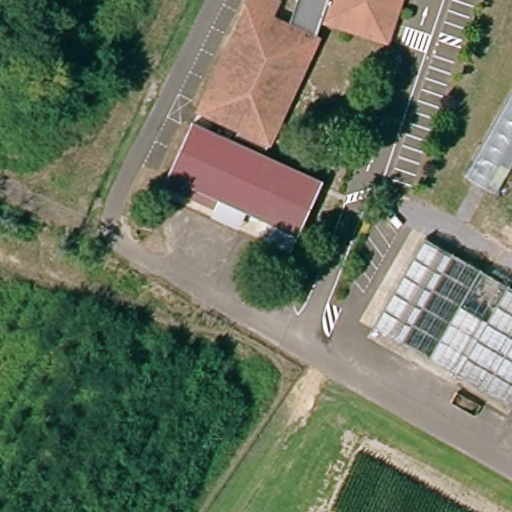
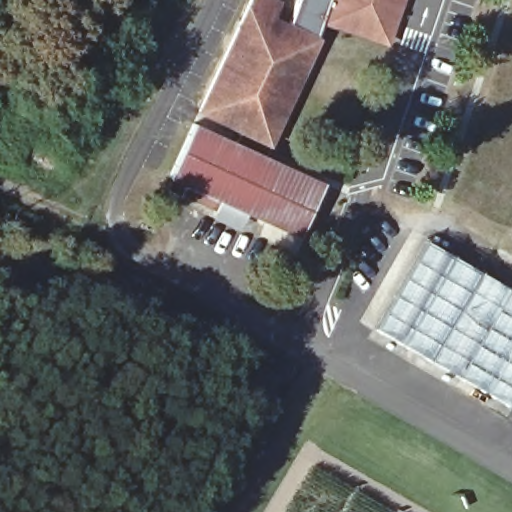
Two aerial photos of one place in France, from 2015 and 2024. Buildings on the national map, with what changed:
unchanged [(291,21),(318,34),(270,138),(199,106),(248,0),(277,0),(271,12),(291,21)]
unchanged [(318,34),(291,21),(297,0),(328,0),(318,34)]
unchanged [(383,18),(389,0),(398,0),(386,36),(327,17),(332,1),(383,18)]
unchanged [(383,18),(332,1),(332,0),(389,0),(383,18)]
demolished [(497,193),(468,177),(512,98),(512,167),(497,193)]
unchanged [(299,230),(171,171),(194,121),(322,180),(299,230)]
unchanged [(512,287),(512,407),(374,327),(425,237),(512,287)]

